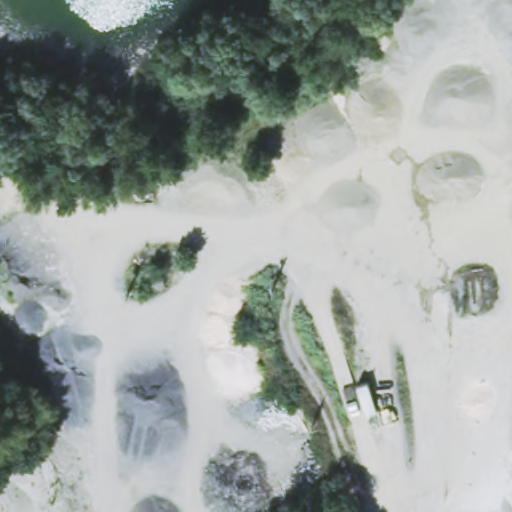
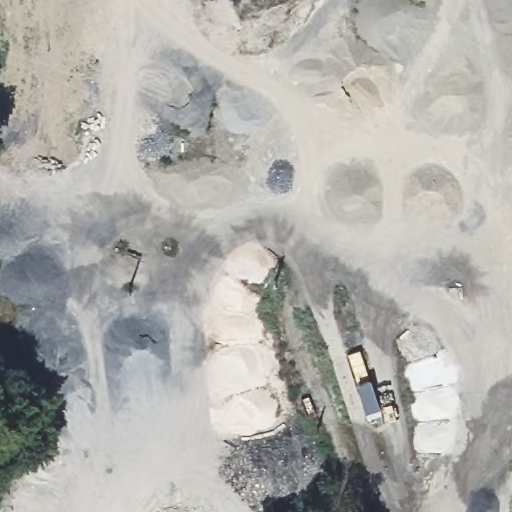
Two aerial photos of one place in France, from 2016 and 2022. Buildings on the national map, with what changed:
unchanged [(361,398),(356,377),(377,370),(384,391),(361,398)]

